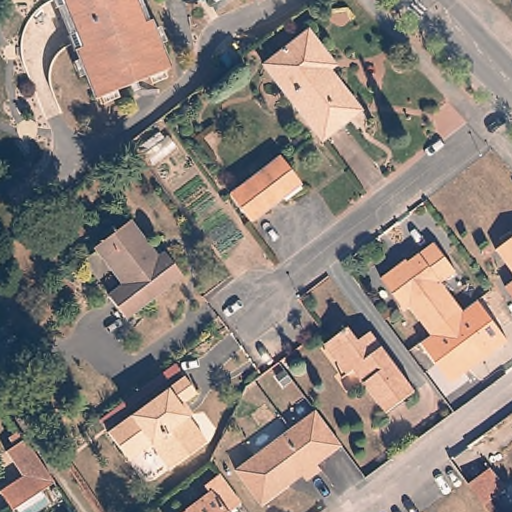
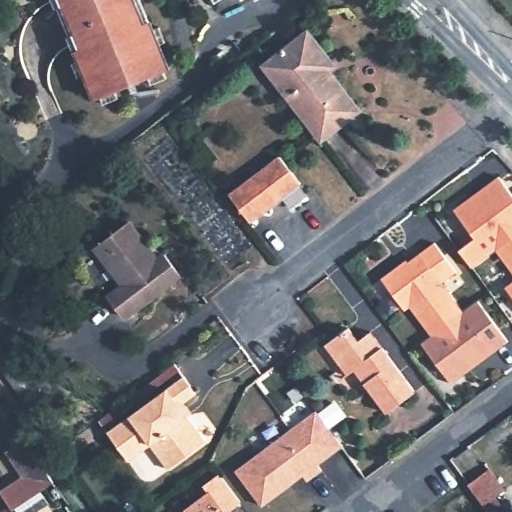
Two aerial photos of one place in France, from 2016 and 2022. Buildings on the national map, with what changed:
unchanged [(66,36),(69,35),(57,7),(55,9),(51,0),(140,0),(148,21),(152,30),(159,26),(165,42),(158,45),(168,70),(163,71),(166,79),(150,85),(147,77),(115,91),(118,98),(102,104),(100,97),(95,99),(85,75),(77,77),(71,62),(78,59),(75,51),(73,51),(66,36)]
unchanged [(157,2),(156,0),(162,0),(157,2)]
unchanged [(215,2),(214,0),(218,0),(215,2)]
unchanged [(332,65),(327,70),(334,79),(358,110),(320,140),(288,97),(262,65),(272,58),(307,31),(332,65)]
unchanged [(280,156),(300,184),(250,222),(229,195),(280,156)]
new [(495,250),(470,268),(456,250),(473,237),(452,209),(496,175),(512,196),(512,237),(495,250)]
unchanged [(157,259),(164,254),(180,275),(124,318),(107,297),(122,285),(94,247),(129,221),(157,259)]
unchanged [(495,250),(512,237),(512,271),(495,250)]
unchanged [(399,265),(401,267),(434,242),(455,272),(441,283),(462,312),(433,334),(411,305),(404,310),(380,278),(399,265)]
unchanged [(505,287),(512,282),(512,297),(505,287)]
unchanged [(386,412),(354,370),(347,375),(325,345),(347,327),(358,341),(370,332),(374,337),(415,391),(386,412)]
unchanged [(0,366),(0,345),(5,341),(15,356),(0,366)]
unchanged [(112,432),(189,376),(201,393),(188,403),(196,414),(192,417),(211,442),(174,469),(155,445),(133,460),(130,456),(112,432)]
unchanged [(235,470),(315,411),(342,446),(317,465),(321,470),(307,481),(302,475),(288,485),(289,485),(262,506),(235,470)]
unchanged [(18,512),(15,508),(12,510),(0,492),(0,491),(22,476),(5,452),(14,446),(8,437),(19,430),(24,439),(54,482),(41,491),(50,503),(37,512),(18,512)]
unchanged [(489,469),(505,490),(495,497),(506,512),(489,512),(468,484),(489,469)]
unchanged [(204,486),(220,475),(240,502),(226,512),(187,512),(210,495),(204,486)]

